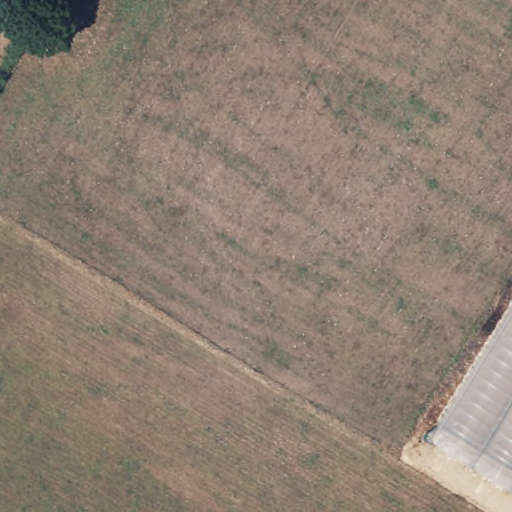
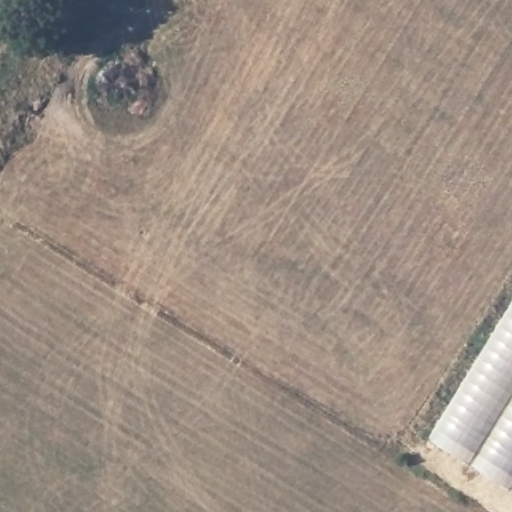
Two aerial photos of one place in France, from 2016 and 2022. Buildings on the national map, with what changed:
unchanged [(512,302),(512,488),(428,438),(512,302)]

